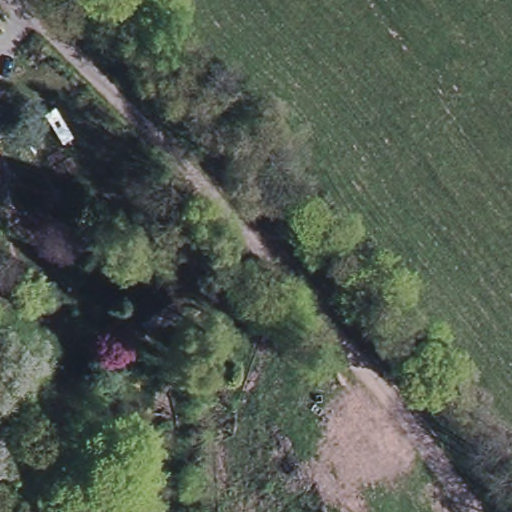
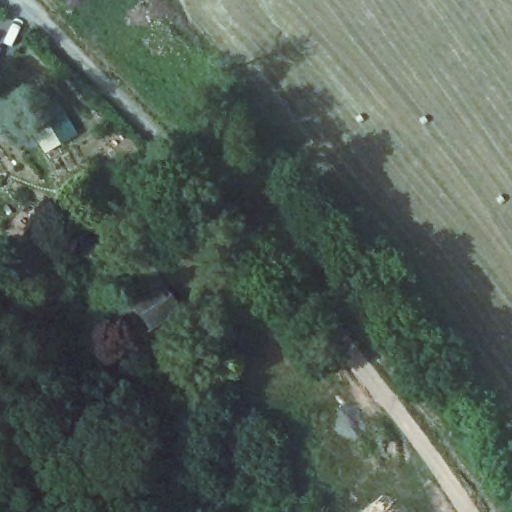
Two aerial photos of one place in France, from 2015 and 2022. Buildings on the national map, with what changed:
unchanged [(141,304),(147,302),(153,297),(140,277),(152,268),(166,289),(179,310),(160,322),(155,325),(141,304)]

